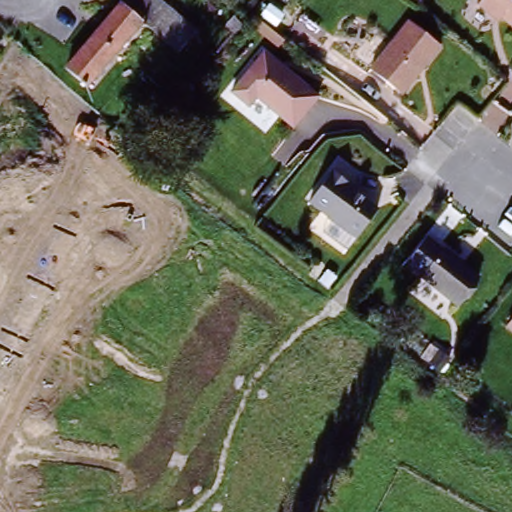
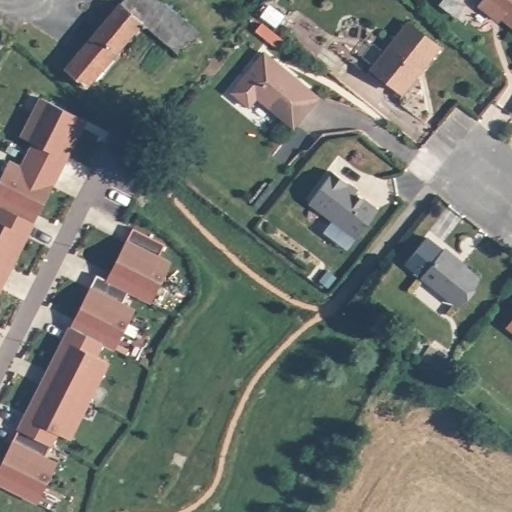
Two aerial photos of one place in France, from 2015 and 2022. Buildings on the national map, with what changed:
unchanged [(186,16),(177,27),(168,37),(144,17),(87,83),(67,64),(122,0),(167,0),(186,16)]
unchanged [(512,23),(495,9),(492,13),(477,1),(478,0),(512,0),(512,23)]
unchanged [(420,63),(418,61),(412,69),(415,71),(400,89),(369,64),(407,19),(437,44),(420,63)]
unchanged [(231,90),(263,51),(316,95),(292,125),(256,96),(248,105),(231,90)]
new [(78,117),(85,121),(82,128),(60,173),(27,156),(33,144),(21,138),(41,99),(78,117)]
new [(2,208),(0,207),(0,180),(9,162),(21,168),(27,156),(60,173),(37,217),(33,224),(11,269),(7,276),(0,290),(0,211),(2,208)]
unchanged [(350,183),(347,187),(379,212),(357,239),(310,203),(335,172),(350,183)]
new [(70,327),(73,321),(97,276),(107,281),(107,280),(110,274),(133,230),(165,246),(158,259),(170,266),(151,303),(129,292),(122,305),(135,312),(115,350),(103,344),(96,357),(108,364),(89,402),(70,440),(57,434),(50,447),(18,431),(41,386),(44,379),(47,373),(70,327)]
unchanged [(447,249),(482,277),(460,304),(425,276),(447,249)]
unchanged [(512,318),(512,326),(508,323),(512,318)]
new [(18,431),(50,447),(45,459),(57,465),(37,504),(0,485),(0,467),(18,431)]

